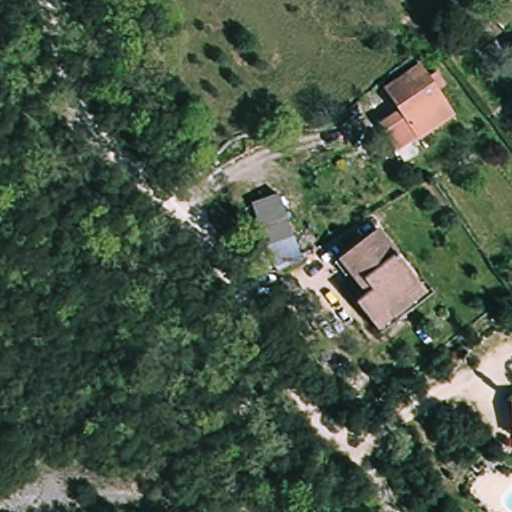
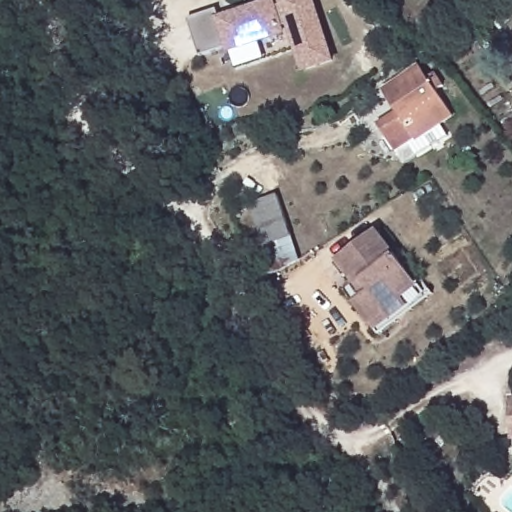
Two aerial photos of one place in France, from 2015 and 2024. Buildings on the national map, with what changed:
new [(218,8),(221,15),(265,0),(316,0),(336,62),(303,73),(289,33),(227,53),(225,48),(200,56),(188,18),(218,8)]
unchanged [(400,116),(385,89),(424,66),(428,74),(433,71),(443,84),(440,92),(454,116),(412,142),(421,156),(405,166),(381,128),(400,116)]
unchanged [(247,202),(277,189),(304,264),(275,273),(247,202)]
unchanged [(371,324),(355,301),(369,290),(359,279),(351,268),(344,274),(335,260),(342,256),(381,227),(420,280),(431,295),(379,333),(371,324)]

